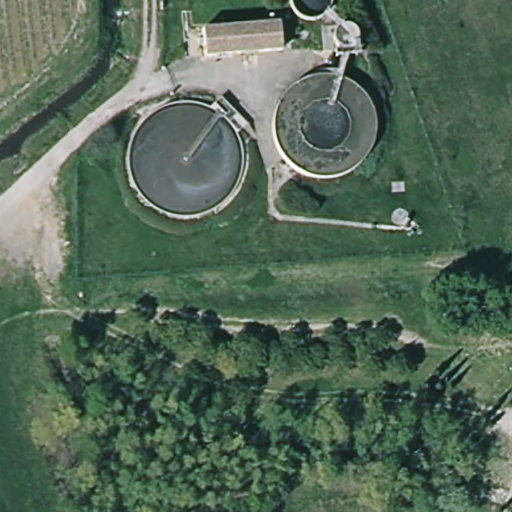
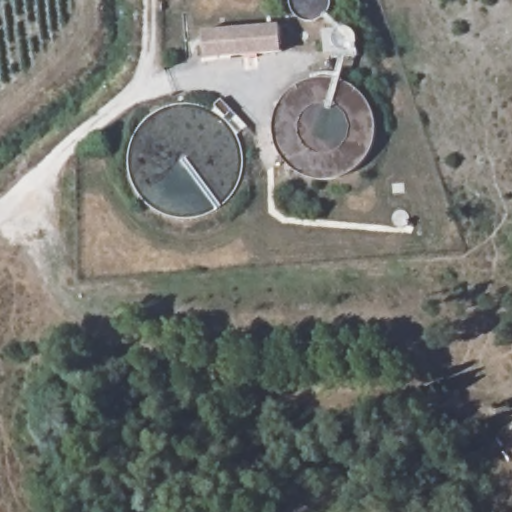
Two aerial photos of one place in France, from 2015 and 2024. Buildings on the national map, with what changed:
unchanged [(279,25),(280,55),(205,58),(203,29),(279,25)]

